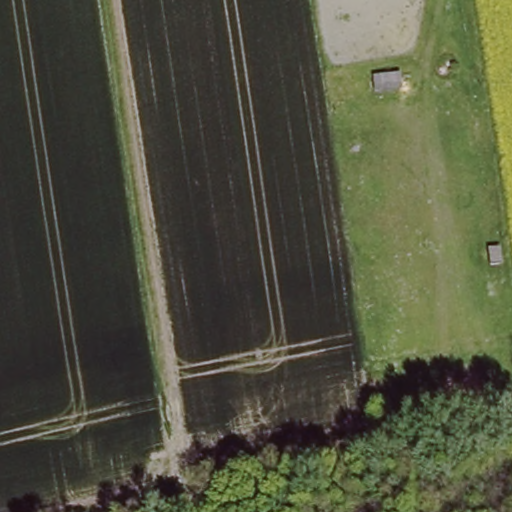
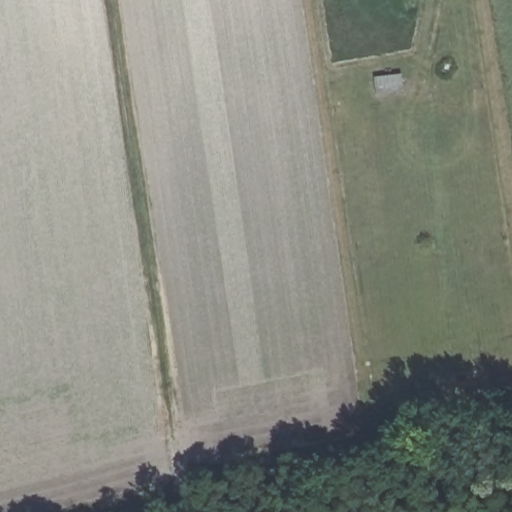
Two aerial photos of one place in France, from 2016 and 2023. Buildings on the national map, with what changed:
[]

